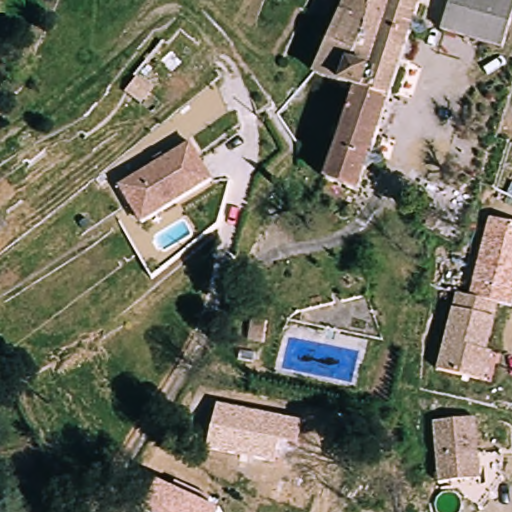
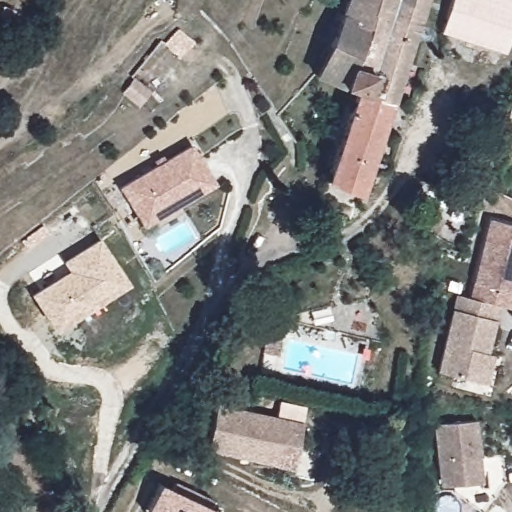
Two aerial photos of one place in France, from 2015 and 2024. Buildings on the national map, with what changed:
unchanged [(315,70),(340,6),(343,0),(373,0),(343,81),(315,70)]
unchanged [(343,81),(373,0),(429,0),(368,193),(332,169),(361,88),(343,81)]
unchanged [(459,0),(512,0),(512,23),(506,43),(451,26),(459,0)]
unchanged [(138,105),(115,88),(135,66),(155,85),(138,105)]
unchanged [(140,225),(120,188),(190,148),(211,184),(140,225)]
unchanged [(491,219),(512,224),(512,311),(500,308),(470,300),(491,219)]
new [(52,330),(28,293),(66,270),(60,260),(98,237),(127,283),(52,330)]
unchanged [(479,386),(437,376),(457,298),(500,308),(486,358),(492,359),(485,388),(479,386)]
unchanged [(300,446),(281,442),(277,466),(209,451),(218,404),(305,422),(300,446)]
unchanged [(435,421),(476,420),(477,483),(436,484),(435,421)]
unchanged [(504,457),(505,480),(484,510),(451,484),(477,483),(477,454),(504,457)]
unchanged [(160,484),(171,489),(177,483),(213,499),(208,506),(219,512),(147,512),(160,484)]

